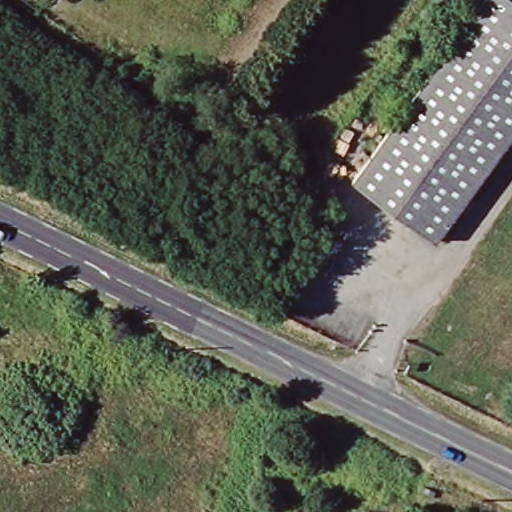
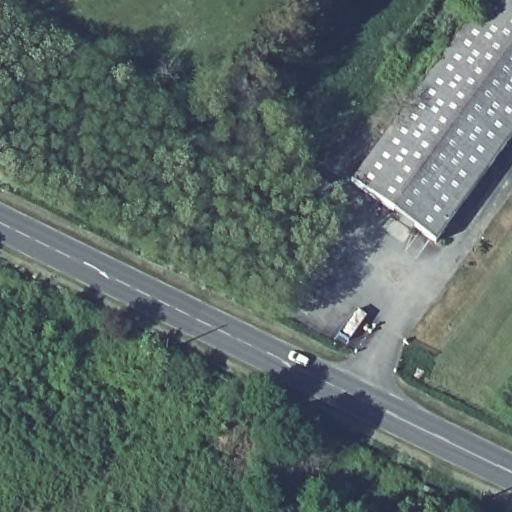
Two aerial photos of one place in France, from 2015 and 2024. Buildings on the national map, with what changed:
unchanged [(512,0),(512,32),(480,10),(486,0),(512,0)]
unchanged [(441,241),(356,182),(480,10),(512,32),(512,142),(441,241)]

